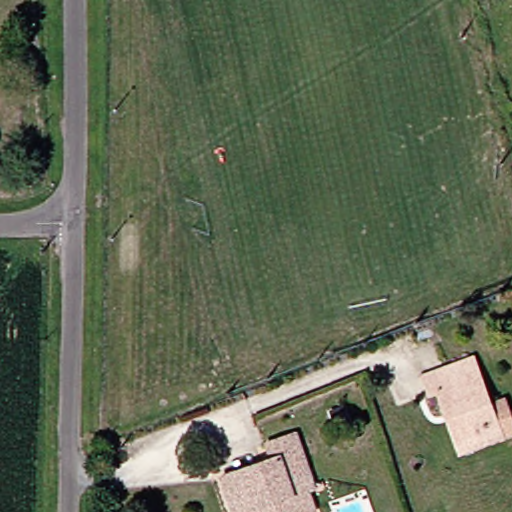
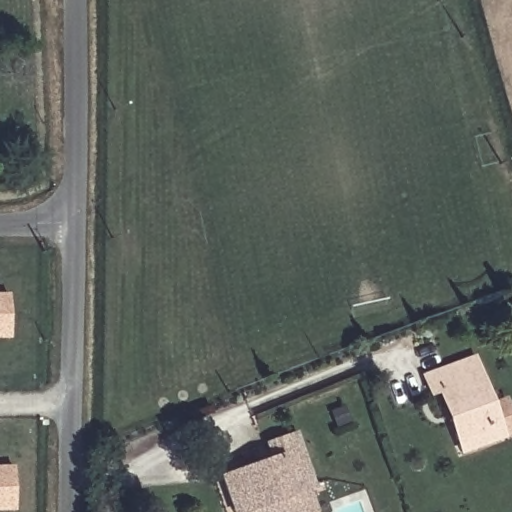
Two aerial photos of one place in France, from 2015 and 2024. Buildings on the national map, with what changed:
new [(0,291),(15,290),(17,332),(0,333),(0,291)]
unchanged [(422,394),(417,396),(408,376),(460,355),(490,435),(450,450),(436,417),(431,419),(422,394)]
unchanged [(224,511),(221,512),(219,512),(205,471),(255,452),(252,441),(283,428),(303,482),(297,484),(305,505),(290,512),(224,512),(224,511)]
new [(0,467),(19,466),(20,508),(0,509),(0,467)]

